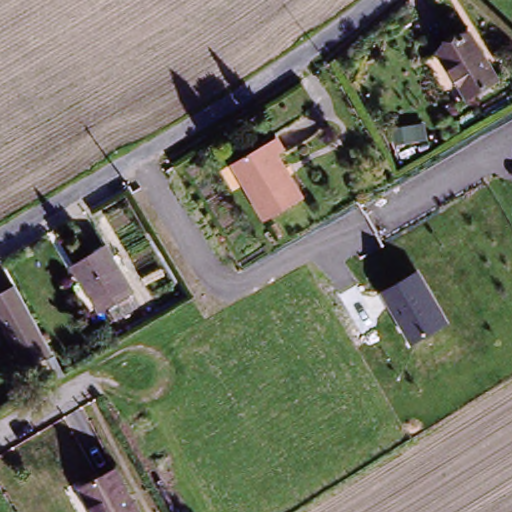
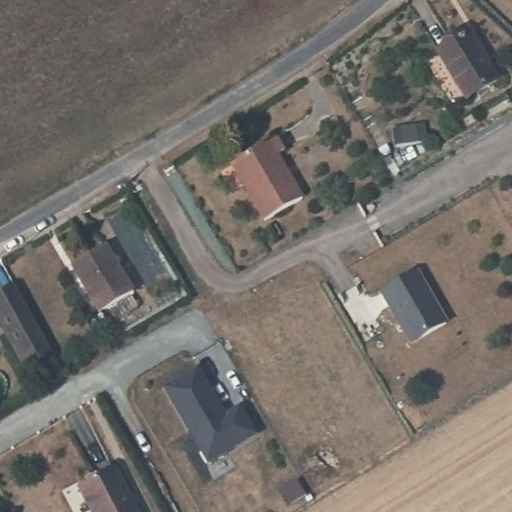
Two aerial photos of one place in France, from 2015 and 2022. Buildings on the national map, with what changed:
unchanged [(471,30),(499,77),(459,104),(431,53),(471,30)]
unchanged [(271,137),(283,155),(274,160),(297,198),(261,220),(228,165),(271,137)]
unchanged [(101,244),(131,295),(94,316),(63,267),(101,244)]
unchanged [(449,322),(409,346),(379,294),(418,269),(449,322)]
unchanged [(9,285),(19,301),(50,349),(49,349),(24,364),(0,325),(0,291),(9,285)]
new [(228,413),(243,403),(261,433),(208,462),(165,386),(198,365),(228,413)]
unchanged [(122,472),(144,512),(99,512),(88,491),(122,472)]

